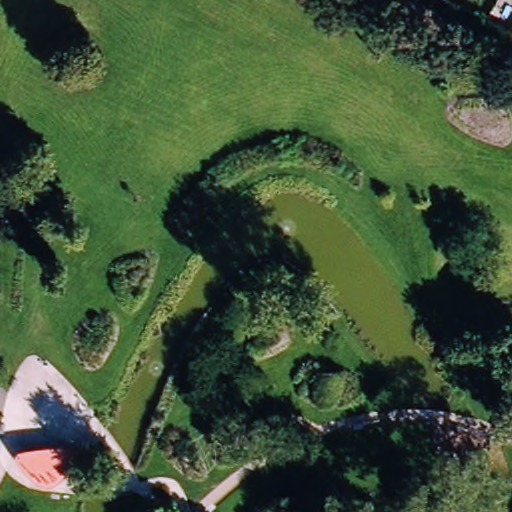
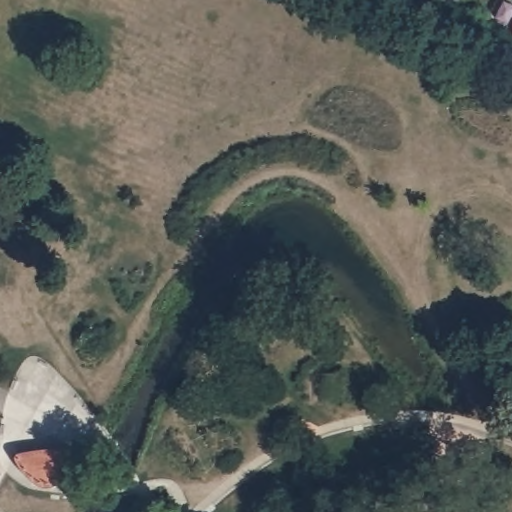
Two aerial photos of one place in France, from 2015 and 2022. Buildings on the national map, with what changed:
unchanged [(454,7),(440,0),(458,0),(454,7)]

